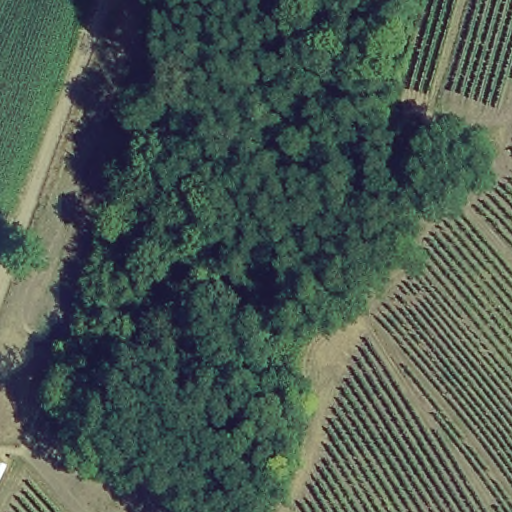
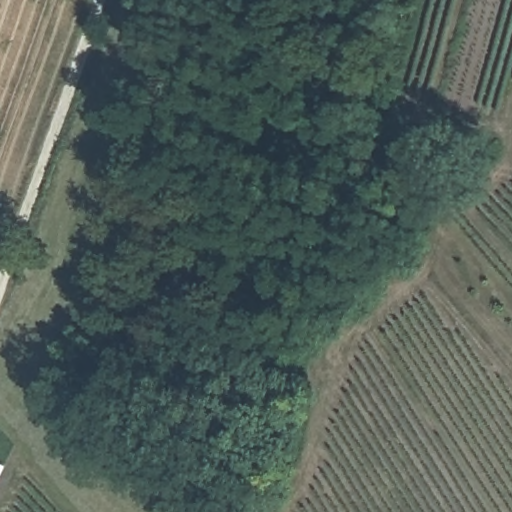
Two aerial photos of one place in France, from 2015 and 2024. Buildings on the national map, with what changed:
unchanged [(0,489),(0,461),(10,469),(0,489)]

